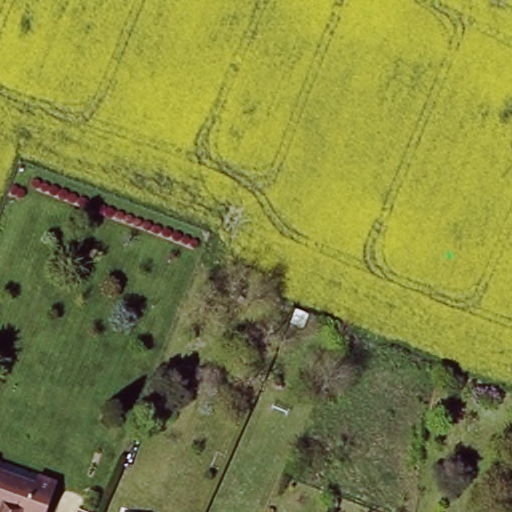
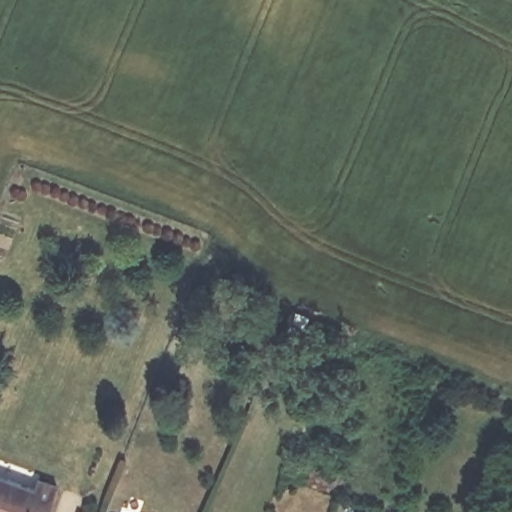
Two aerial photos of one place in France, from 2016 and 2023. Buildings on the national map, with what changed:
unchanged [(35,475),(55,482),(44,512),(0,512),(0,482),(30,492),(35,475)]

